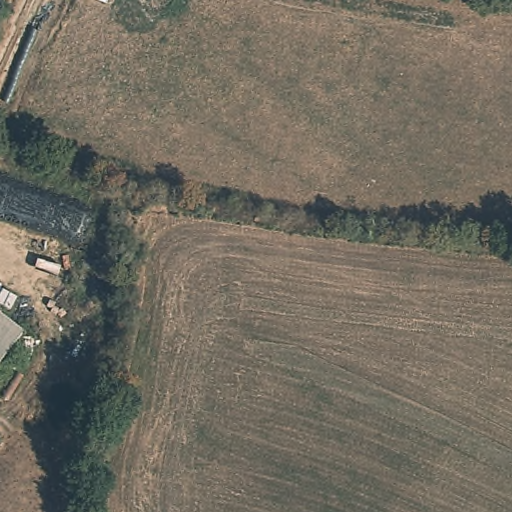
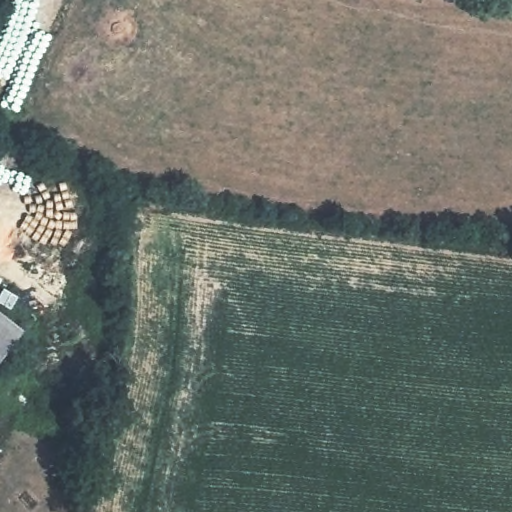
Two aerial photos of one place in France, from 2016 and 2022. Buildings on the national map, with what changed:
unchanged [(17,326),(23,332),(0,363),(0,313),(17,326)]

